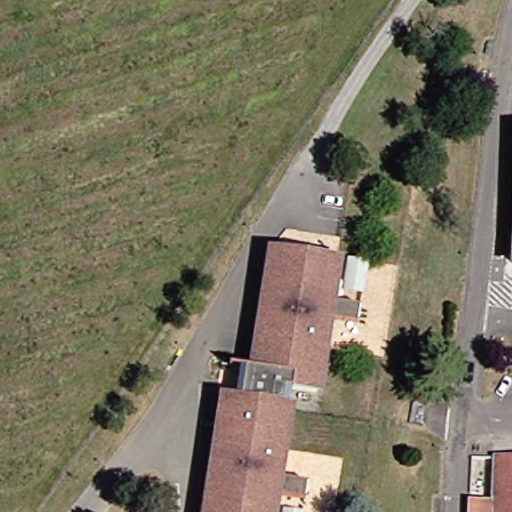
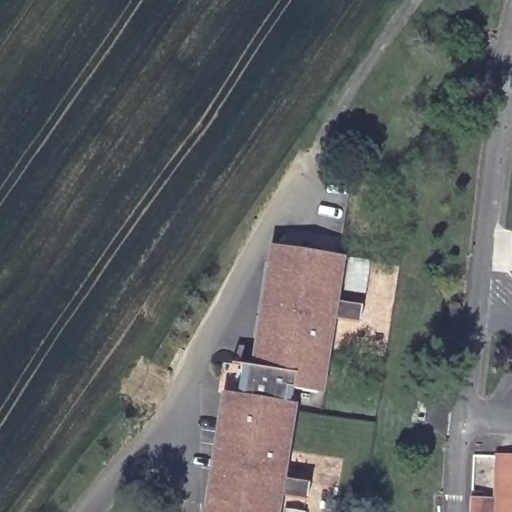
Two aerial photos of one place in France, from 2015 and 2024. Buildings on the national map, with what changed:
unchanged [(251,397),(271,263),(274,247),(281,248),(338,257),(317,393),(291,387),(273,512),(208,512),(226,393),(251,397)]
unchanged [(485,502),(486,460),(512,461),(512,512),(462,512),(462,501),(485,502)]

